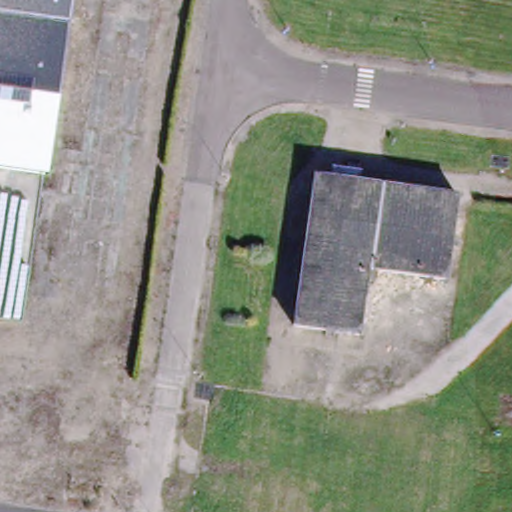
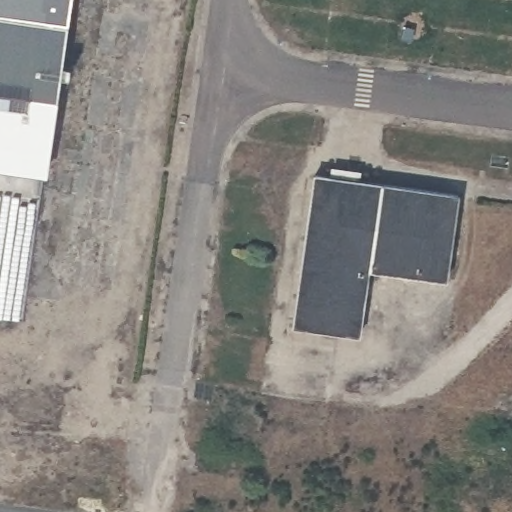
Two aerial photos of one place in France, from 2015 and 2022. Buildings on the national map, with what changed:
unchanged [(0,168),(0,0),(75,0),(49,176),(0,168)]
unchanged [(453,196),(442,281),(364,271),(354,336),(287,327),(309,175),(453,196)]

